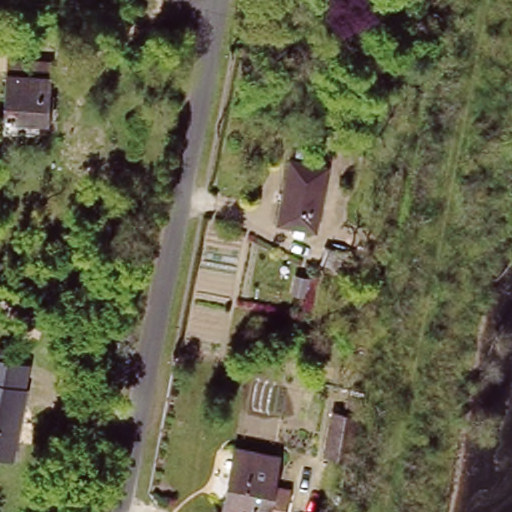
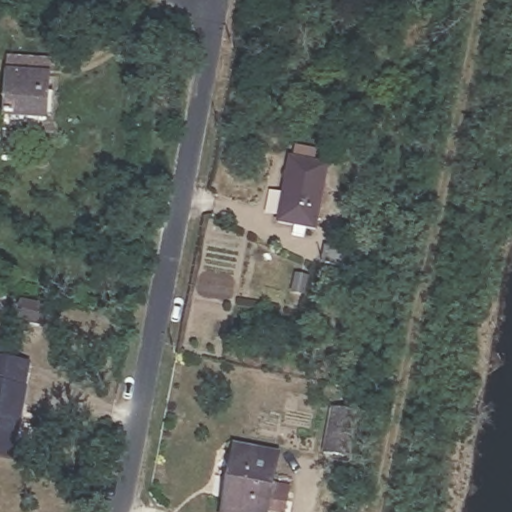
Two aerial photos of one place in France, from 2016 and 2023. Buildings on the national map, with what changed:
unchanged [(47,127),(10,124),(12,111),(4,110),(8,63),(51,68),(47,127)]
unchanged [(287,154),(324,161),(312,225),(282,220),(275,218),(277,210),(287,154)]
unchanged [(358,213),(362,199),(405,207),(402,222),(402,224),(358,214),(358,213)]
unchanged [(25,360),(20,384),(0,381),(0,356),(25,360)]
unchanged [(387,408),(360,402),(365,372),(393,377),(387,408)]
unchanged [(20,384),(22,385),(19,400),(17,416),(10,458),(0,456),(0,381),(20,384)]
unchanged [(346,455),(319,449),(320,441),(324,419),(352,424),(346,455)]
unchanged [(255,461),(268,464),(263,490),(280,493),(277,510),(261,506),(260,512),(216,512),(230,442),(258,447),(255,461)]

